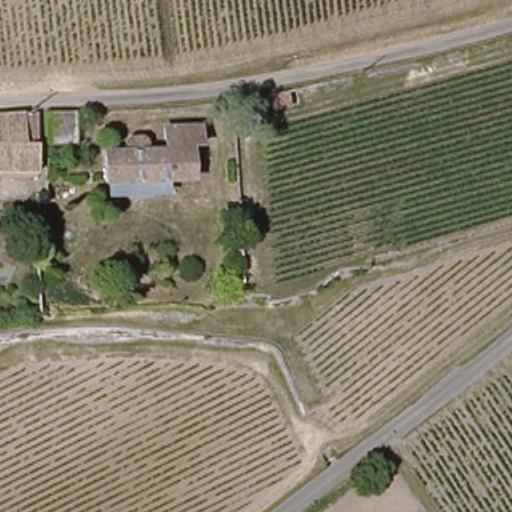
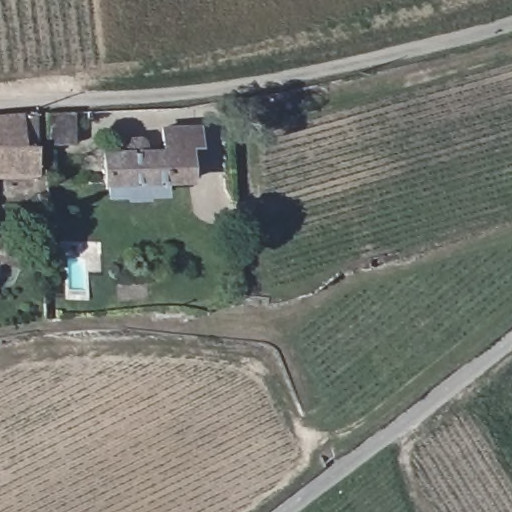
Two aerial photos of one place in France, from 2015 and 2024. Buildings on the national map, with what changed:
unchanged [(77,144),(50,145),(48,113),(76,112),(77,144)]
unchanged [(36,174),(32,174),(0,172),(0,116),(36,114),(36,174)]
unchanged [(102,195),(101,181),(100,153),(119,152),(120,146),(122,140),(126,137),(132,137),(137,139),(140,144),(141,151),(162,151),(161,127),(193,127),(192,147),(180,147),(181,180),(155,180),(155,194),(102,195)]
unchanged [(40,197),(40,192),(47,192),(46,184),(59,184),(59,205),(36,205),(36,197),(40,197)]

